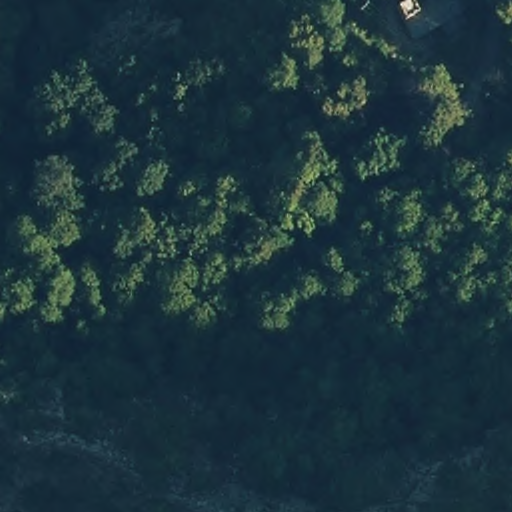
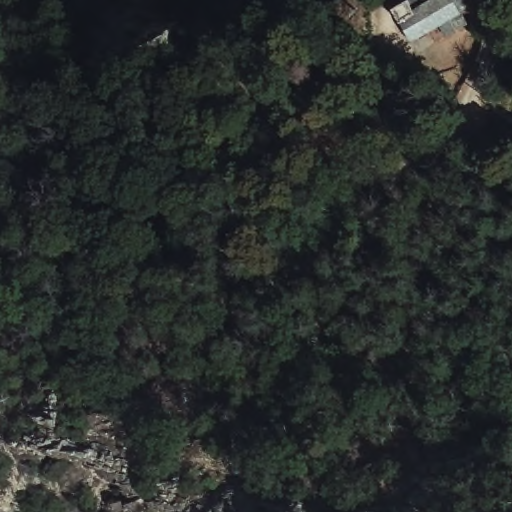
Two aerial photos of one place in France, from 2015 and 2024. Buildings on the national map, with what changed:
unchanged [(407,0),(468,0),(470,3),(462,8),(470,24),(449,37),(442,26),(412,41),(394,7),(407,0)]

